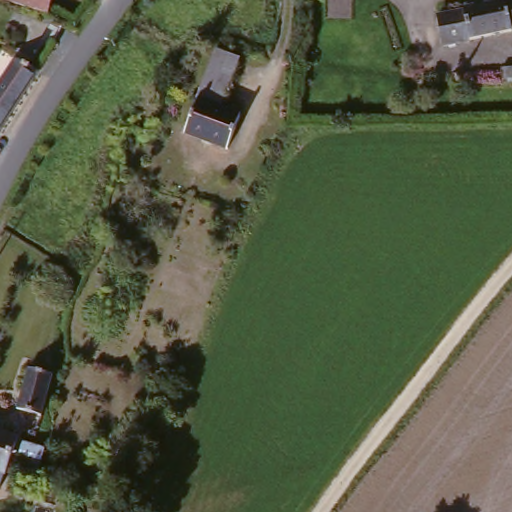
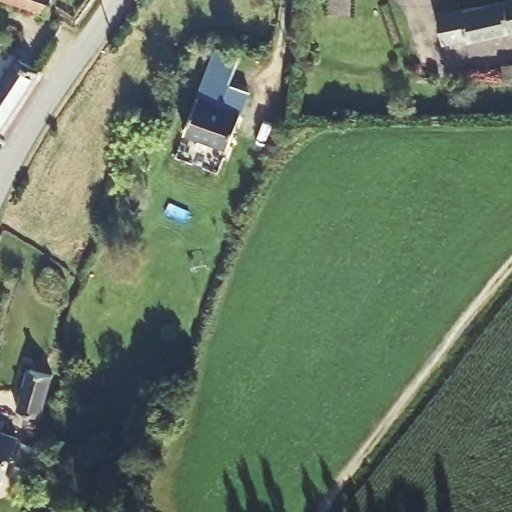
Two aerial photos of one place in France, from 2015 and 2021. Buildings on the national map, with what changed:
unchanged [(0,4),(0,0),(54,0),(48,19),(0,4)]
unchanged [(508,40),(506,38),(443,51),(436,22),(512,5),(512,40),(508,40)]
unchanged [(238,64),(219,111),(238,118),(226,154),(183,136),(216,55),(238,64)]
unchanged [(14,65),(35,78),(0,137),(0,87),(13,67),(14,65)]
unchanged [(498,77),(512,77),(512,93),(501,93),(498,77)]
unchanged [(25,376),(51,383),(41,423),(16,417),(21,392),(25,376)]
unchanged [(0,492),(0,438),(15,444),(0,492)]
unchanged [(21,461),(39,468),(32,489),(13,482),(21,461)]

